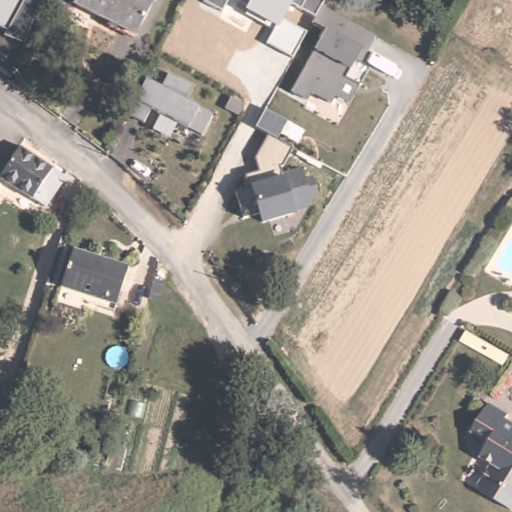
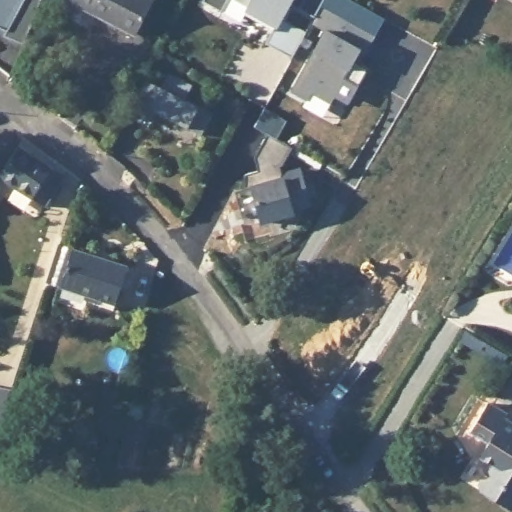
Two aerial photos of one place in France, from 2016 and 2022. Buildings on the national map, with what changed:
unchanged [(0,27),(0,0),(21,0),(6,30),(0,27)]
unchanged [(41,0),(24,42),(6,30),(21,0),(41,0)]
unchanged [(73,0),(141,0),(129,27),(73,0)]
unchanged [(203,1),(203,0),(226,0),(222,11),(203,1)]
unchanged [(324,30),(309,23),(313,15),(292,2),(283,19),(305,31),(292,55),(266,42),(275,27),(243,12),(247,4),(238,0),(322,0),(319,6),(377,35),(360,65),(367,69),(349,104),(334,97),(331,103),(310,92),(305,99),(291,91),(312,52),(324,30)]
unchanged [(144,78),(158,86),(167,71),(193,80),(185,95),(212,110),(199,133),(151,111),(143,125),(125,120),(144,78)]
unchanged [(257,171),(252,159),(269,135),(292,148),(280,171),(312,169),(316,204),(262,223),(260,215),(243,220),(235,181),(257,171)]
unchanged [(39,201),(0,175),(0,162),(13,142),(14,140),(59,172),(39,201)]
unchanged [(127,262),(114,301),(88,292),(81,307),(55,297),(73,245),(127,262)]
unchanged [(2,420),(0,420),(0,399),(5,401),(2,420)]
unchanged [(508,511),(499,505),(478,492),(476,485),(489,465),(478,458),(486,445),(469,433),(487,405),(505,416),(502,422),(512,428),(512,509),(508,511)]

